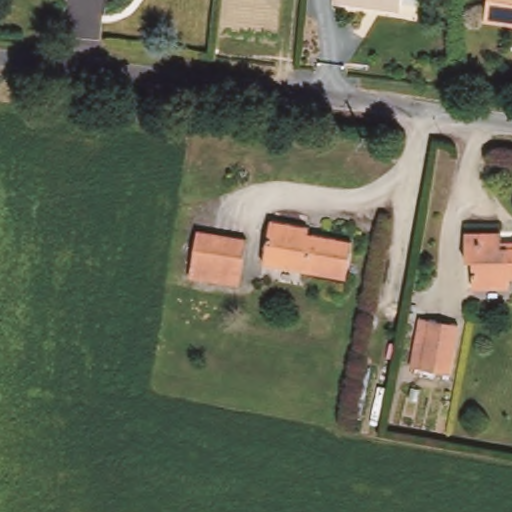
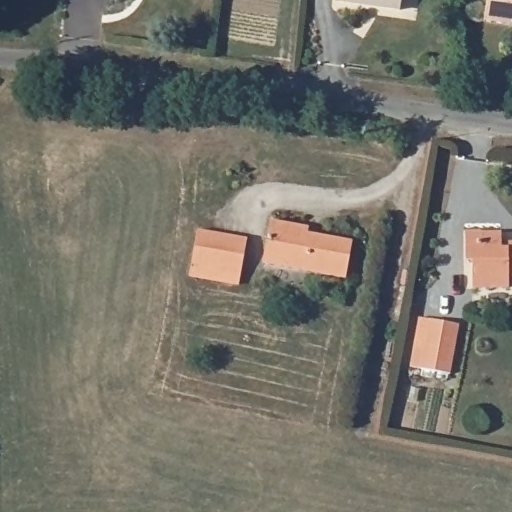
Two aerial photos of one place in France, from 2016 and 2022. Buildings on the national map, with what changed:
unchanged [(399,11),(335,4),(335,0),(400,0),(399,11)]
unchanged [(489,0),(512,0),(512,22),(486,18),(489,0)]
unchanged [(308,228),(309,234),(354,241),(349,277),(264,264),(270,222),(308,228)]
unchanged [(501,244),(512,244),(512,278),(510,278),(511,289),(476,291),(475,261),(468,262),(466,230),(501,228),(501,244)]
unchanged [(246,242),(241,276),(194,268),(199,234),(246,242)]
unchanged [(425,344),(429,316),(458,320),(451,370),(413,364),(416,342),(425,344)]

